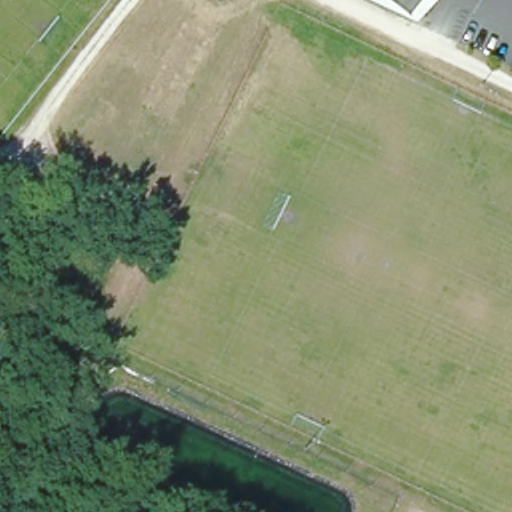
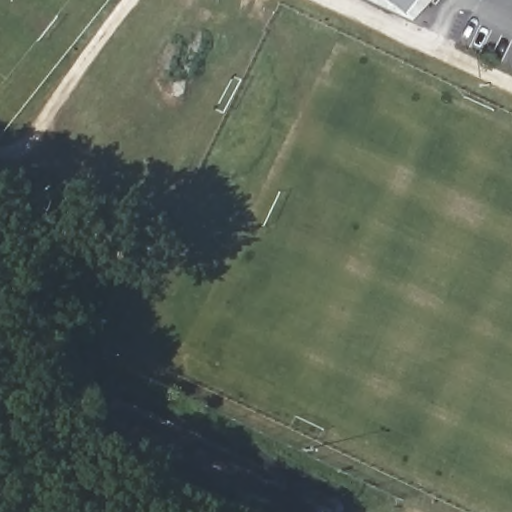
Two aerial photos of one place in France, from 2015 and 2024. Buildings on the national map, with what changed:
unchanged [(415,20),(372,0),(432,0),(415,20)]

